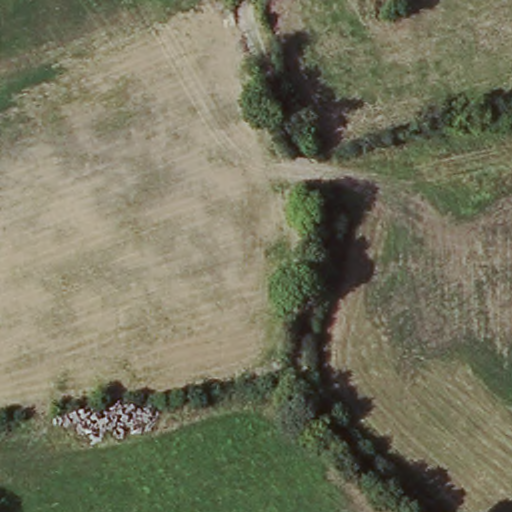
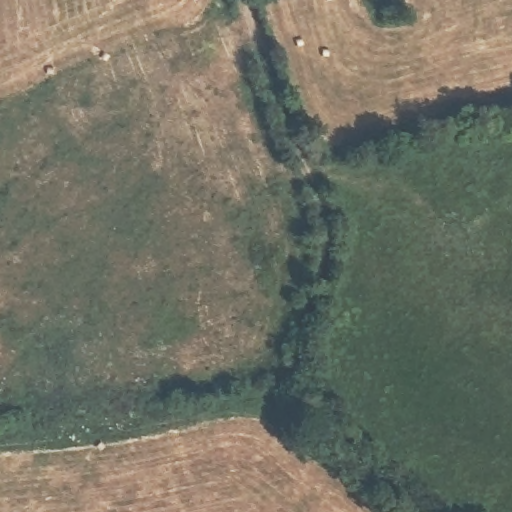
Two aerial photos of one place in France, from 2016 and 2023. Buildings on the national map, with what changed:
[]

